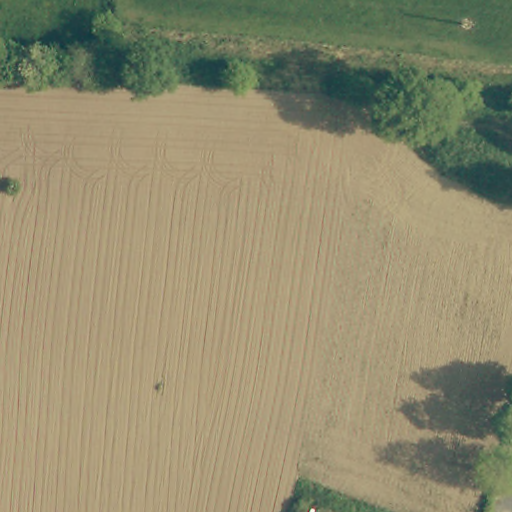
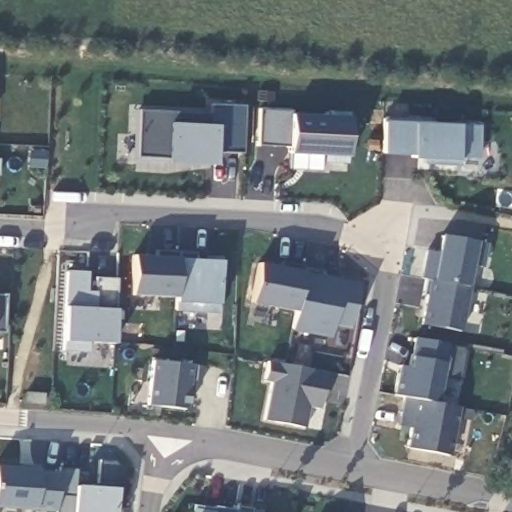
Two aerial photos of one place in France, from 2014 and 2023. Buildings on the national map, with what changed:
new [(216,151),(215,164),(165,161),(165,158),(137,156),(139,110),(210,114),(210,103),(245,105),(242,152),(216,151)]
new [(289,145),(258,145),(260,108),(293,109),(293,113),(333,116),(333,111),(349,111),(348,117),(347,156),(346,163),(324,162),(324,155),(289,153),(289,145)]
new [(458,158),(457,166),(421,165),(421,159),(412,159),(411,155),(382,154),(383,120),(413,122),(459,124),(480,126),(479,158),(458,158)]
new [(461,331),(421,324),(431,280),(441,235),(476,240),(487,243),(483,266),(472,264),(467,288),(470,289),(461,331)]
new [(217,312),(175,311),(175,302),(175,296),(131,294),(133,255),(156,256),(156,250),(195,252),(195,259),(219,260),(218,304),(217,312)]
new [(250,302),(258,262),(302,271),(303,267),(322,270),(321,276),(358,283),(349,328),(331,325),(329,336),(291,329),(295,311),(250,302)]
new [(87,282),(94,282),(94,277),(117,278),(115,308),(113,342),(89,342),(88,352),(62,351),(62,342),(65,306),(67,270),(87,271),(87,282)]
new [(0,332),(0,295),(6,295),(4,331),(0,332)]
new [(401,365),(408,366),(410,356),(412,356),(416,337),(448,344),(464,347),(458,379),(442,376),(437,403),(403,397),(394,396),(401,365)]
new [(193,393),(188,392),(186,409),(147,404),(152,360),(191,364),(196,365),(193,393)]
new [(326,371),(320,409),(308,406),(304,428),(264,420),(272,382),(264,381),(268,361),(326,371)]
new [(405,448),(410,428),(397,425),(403,397),(459,407),(449,455),(405,448)]
new [(37,468),(37,472),(58,472),(58,467),(76,468),(76,485),(98,486),(96,480),(116,481),(116,488),(115,512),(55,512),(55,510),(35,509),(0,508),(0,466),(37,468)]
new [(234,512),(193,512),(194,505),(214,508),(214,506),(234,509),(234,512)]

